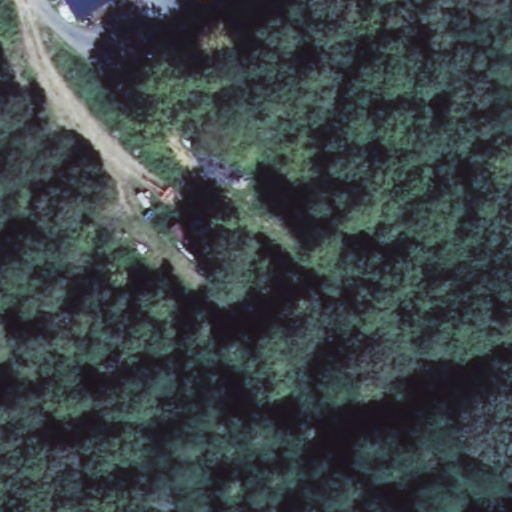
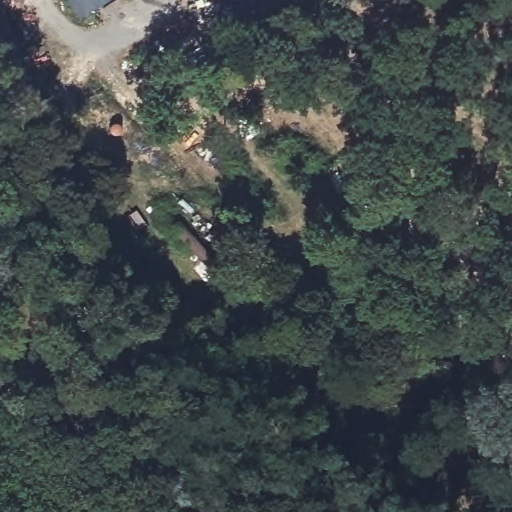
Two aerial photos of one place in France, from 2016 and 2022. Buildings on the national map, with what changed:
unchanged [(84,14),(79,15),(70,0),(105,0),(84,14)]

